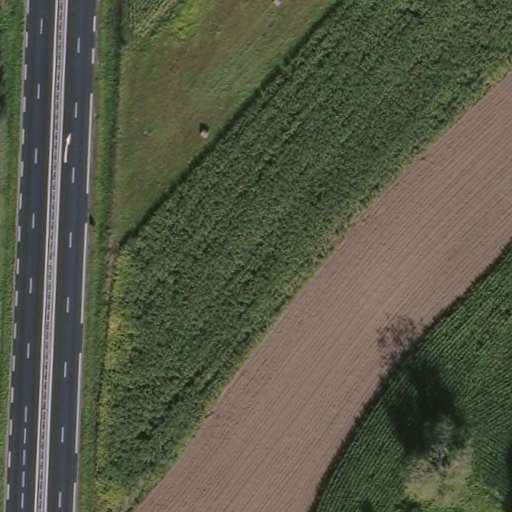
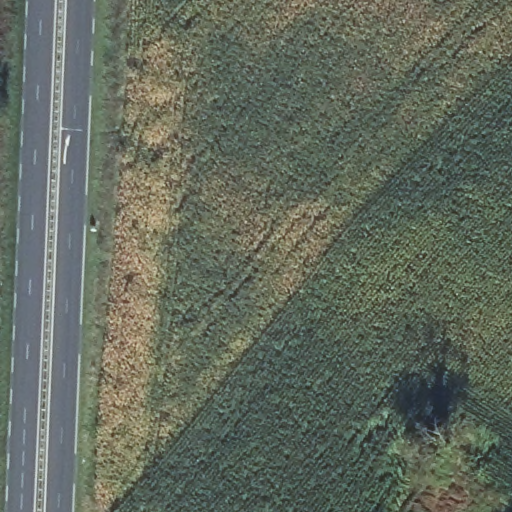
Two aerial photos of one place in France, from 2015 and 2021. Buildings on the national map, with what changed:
[]

